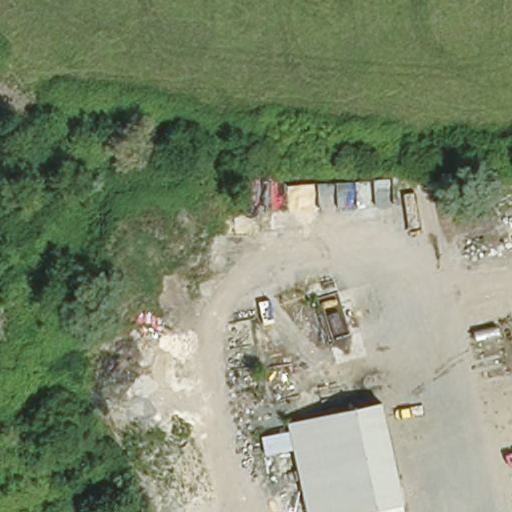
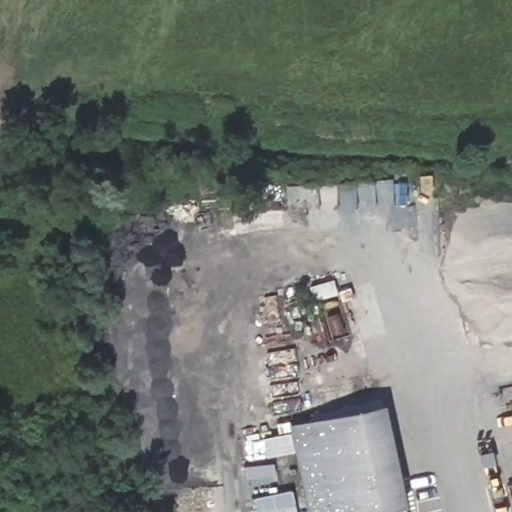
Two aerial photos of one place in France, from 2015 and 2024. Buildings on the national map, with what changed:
unchanged [(412,512),(310,512),(300,471),(260,481),(249,433),(385,401),(412,512)]
new [(290,489),(295,512),(253,512),(250,499),(290,489)]

